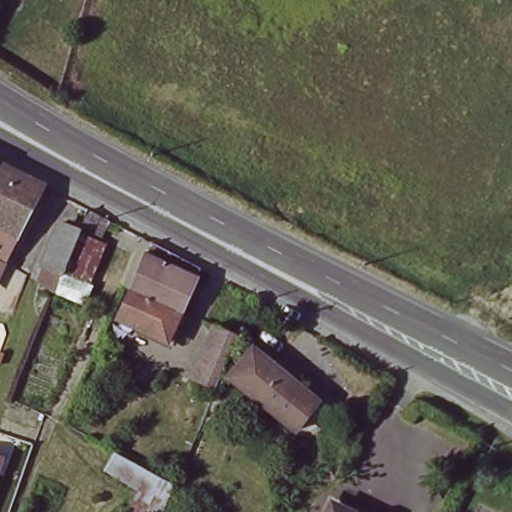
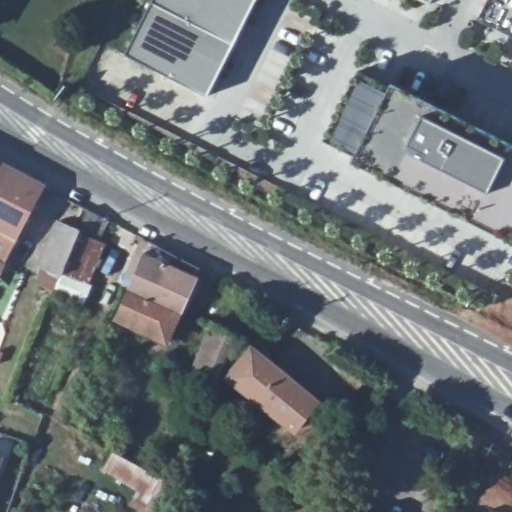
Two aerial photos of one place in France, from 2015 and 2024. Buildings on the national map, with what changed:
new [(208,96),(124,53),(151,0),(254,0),(208,96)]
new [(430,4),(422,0),(432,0),(430,4)]
new [(512,38),(476,20),(486,0),(512,0),(512,38)]
new [(512,245),(511,247),(494,238),(496,232),(319,143),(353,77),(512,154),(512,245)]
unchanged [(42,187),(0,265),(0,266),(0,165),(42,187)]
demolished [(303,206),(316,176),(359,196),(345,226),(303,206)]
unchanged [(86,210),(106,220),(97,243),(101,245),(85,281),(62,272),(78,234),(77,234),(86,210)]
unchanged [(78,234),(62,272),(53,292),(32,282),(56,225),(77,234),(78,234)]
unchanged [(149,247),(198,272),(178,316),(158,307),(127,294),(149,247)]
unchanged [(158,307),(178,316),(164,345),(114,322),(127,294),(158,307)]
unchanged [(186,372),(196,347),(203,349),(212,325),(215,327),(224,307),(243,316),(233,335),(212,386),(192,377),(193,374),(186,372)]
unchanged [(228,377),(249,349),(315,402),(313,405),(318,408),(312,417),(307,413),(293,429),(277,416),(228,377)]
unchanged [(6,457),(0,475),(0,455),(6,457)]
unchanged [(103,470),(112,455),(170,487),(158,512),(143,512),(128,505),(136,489),(103,470)]
unchanged [(326,512),(329,504),(346,512),(326,512)]

